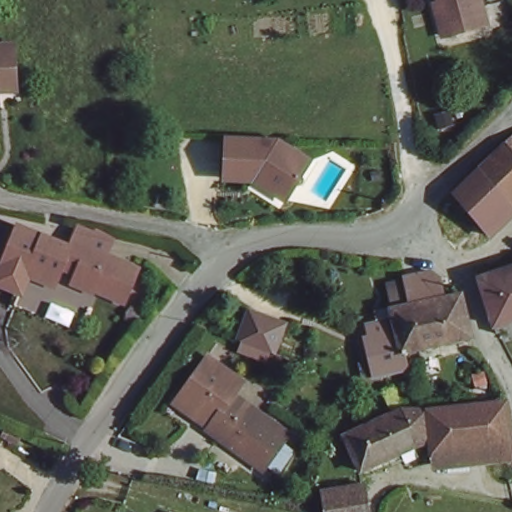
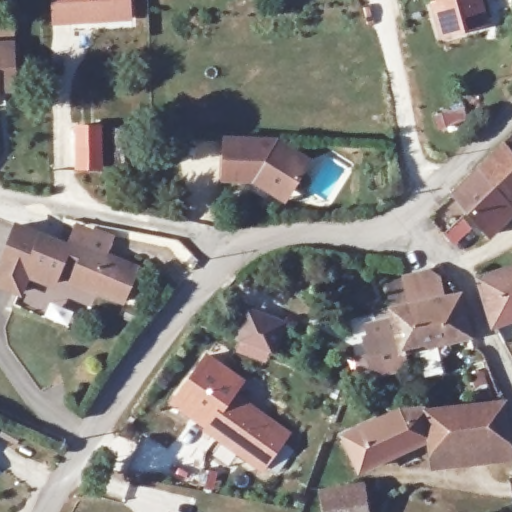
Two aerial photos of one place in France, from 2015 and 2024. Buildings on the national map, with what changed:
new [(131,22),(53,25),(51,0),(130,0),(131,22)]
unchanged [(485,23),(441,35),(432,1),(435,0),(479,0),(485,23)]
unchanged [(1,40),(3,77),(0,77),(0,40),(1,40)]
new [(76,170),(74,125),(102,125),(103,170),(76,170)]
unchanged [(280,134),(310,155),(296,175),(277,180),(266,172),(225,169),(228,129),(280,134)]
unchanged [(512,133),(512,205),(479,169),(512,133)]
unchanged [(486,230),(458,190),(479,169),(512,205),(486,230)]
unchanged [(38,287),(30,285),(26,296),(0,287),(0,260),(15,222),(56,241),(38,287)]
unchanged [(132,302),(101,292),(99,297),(81,290),(85,273),(65,265),(54,292),(38,287),(56,241),(74,249),(76,243),(81,231),(94,235),(96,229),(114,236),(107,255),(145,270),(132,302)]
unchanged [(478,275),(512,265),(512,322),(495,328),(478,275)]
unchanged [(438,338),(421,343),(426,365),(398,374),(384,326),(415,315),(405,282),(423,275),(430,303),(438,338)]
unchanged [(474,290),(483,325),(438,338),(430,303),(474,290)]
unchanged [(286,320),(276,347),(243,336),(253,308),(286,320)]
unchanged [(278,355),(274,367),(246,358),(250,347),(278,355)]
unchanged [(241,388),(233,398),(282,432),(256,466),(206,430),(211,425),(178,400),(207,364),(241,388)]
unchanged [(432,450),(427,438),(356,467),(339,435),(406,410),(498,393),(512,428),(512,438),(432,450)]
unchanged [(331,512),(328,493),(370,486),(374,512),(331,512)]

